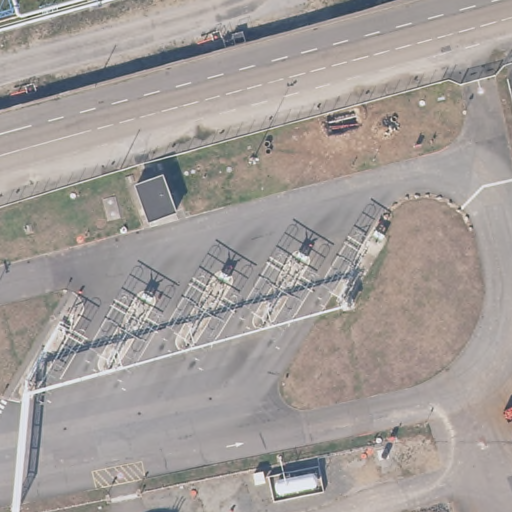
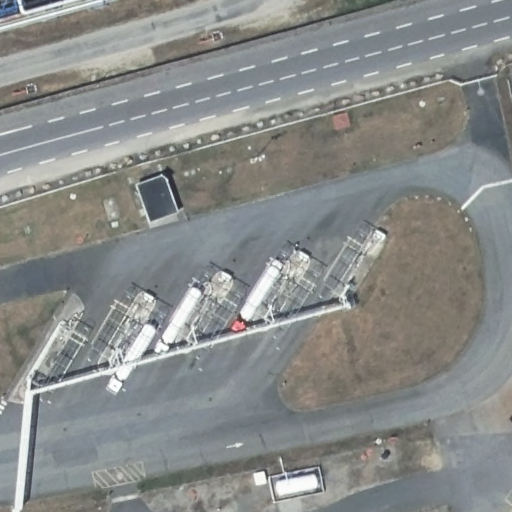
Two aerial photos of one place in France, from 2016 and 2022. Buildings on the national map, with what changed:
unchanged [(171,208),(145,219),(130,182),(156,172),(171,208)]

